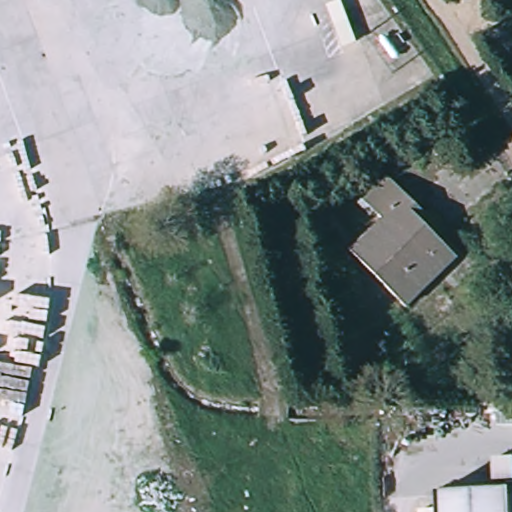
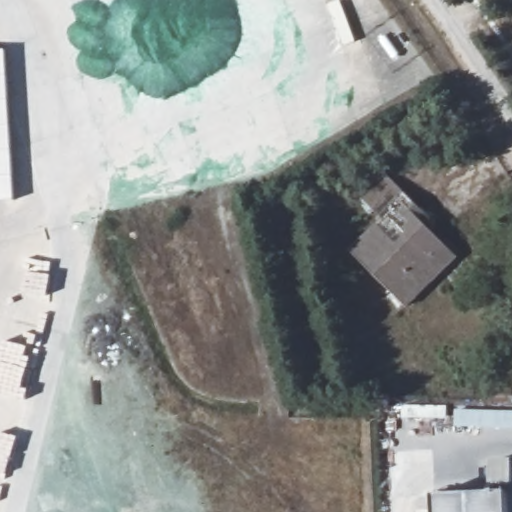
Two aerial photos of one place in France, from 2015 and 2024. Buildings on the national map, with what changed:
new [(5,51),(16,200),(0,202),(0,51),(5,51)]
unchanged [(388,181),(431,225),(424,232),(455,261),(404,312),(349,256),(383,224),(361,205),(388,181)]
unchanged [(511,512),(440,512),(439,491),(510,488),(511,512)]

